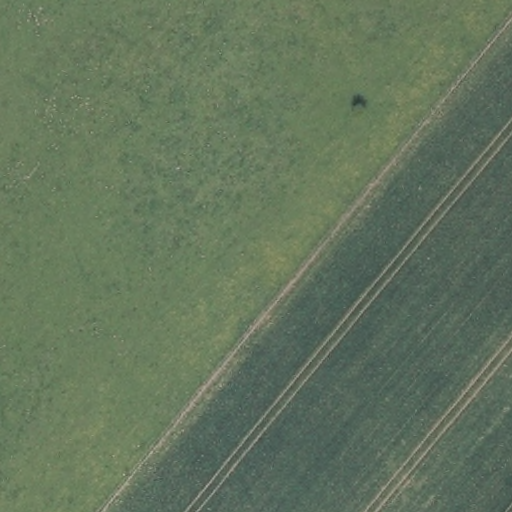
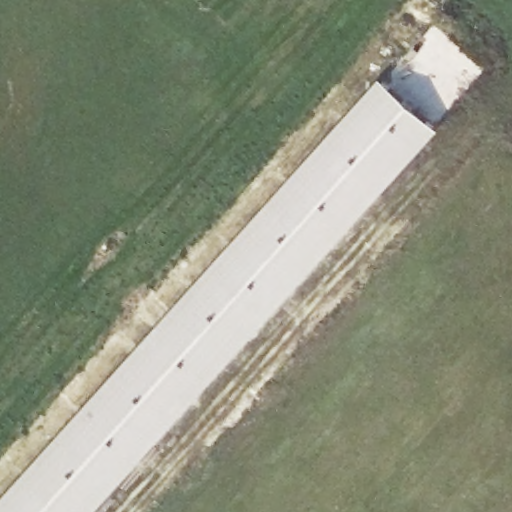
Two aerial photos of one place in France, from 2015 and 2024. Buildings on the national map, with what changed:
new [(436,126),(88,512),(0,512),(0,506),(384,80),(436,126)]

